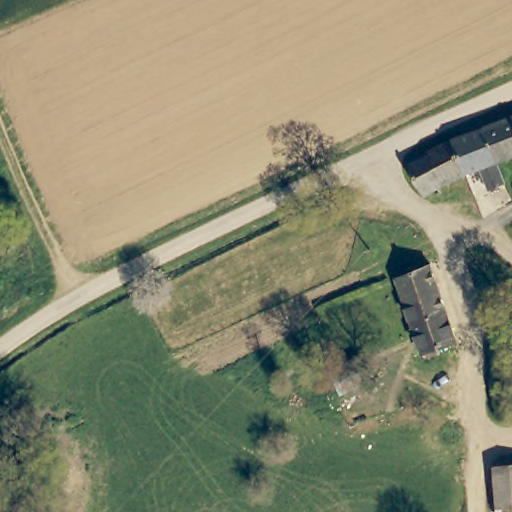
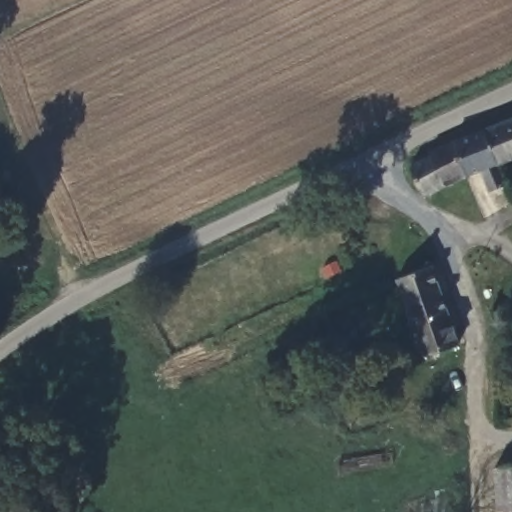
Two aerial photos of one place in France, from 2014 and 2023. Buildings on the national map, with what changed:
unchanged [(435,150),(433,147),(453,137),(482,126),(501,118),(512,114),(512,155),(498,160),(507,181),(491,189),(481,168),(468,173),(448,182),(428,191),(413,161),(432,152),(435,150)]
unchanged [(451,347),(429,355),(416,327),(407,304),(398,281),(431,265),(440,288),(450,313),(461,343),(451,347)]
unchanged [(507,306),(512,322),(512,326),(500,330),(493,311),(507,306)]
unchanged [(364,359),(373,382),(343,397),(341,393),(325,400),(315,380),(364,359)]
unchanged [(512,467),(512,512),(504,512),(498,469),(512,467)]

